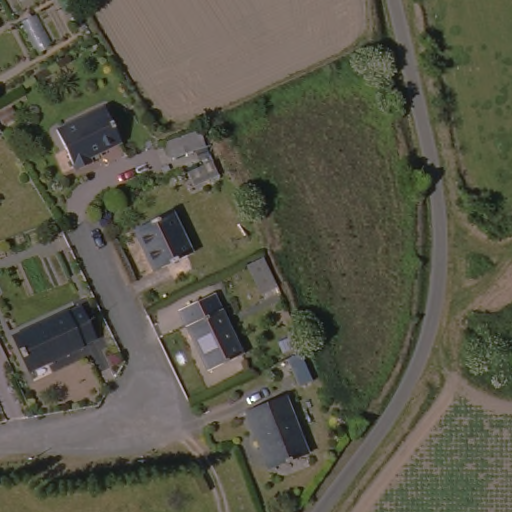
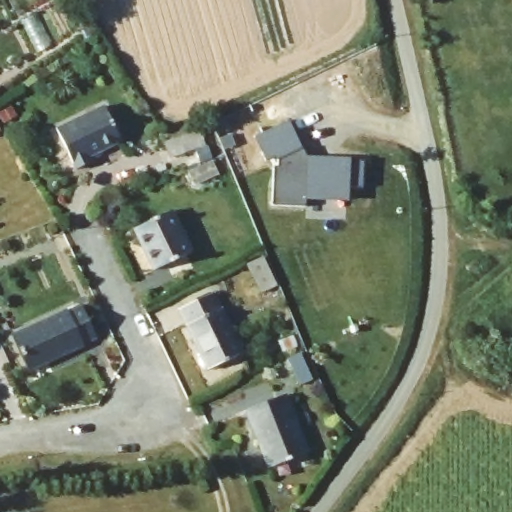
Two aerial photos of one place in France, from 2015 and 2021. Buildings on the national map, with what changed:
unchanged [(102,111),(119,146),(86,160),(89,166),(74,172),(54,132),(102,111)]
new [(303,151),(307,158),(351,160),(364,161),(363,188),(350,186),(349,202),(306,200),(306,207),(274,206),(275,166),(280,166),(280,161),(278,161),(276,157),(267,161),(256,137),(289,122),(303,151)]
unchanged [(0,128),(4,135),(0,137),(0,128)]
unchanged [(209,141),(214,156),(188,166),(183,149),(209,141)]
unchanged [(228,182),(206,191),(199,175),(221,166),(228,182)]
unchanged [(127,235),(169,217),(184,257),(141,273),(127,235)]
unchanged [(268,307),(258,281),(269,275),(281,302),(268,307)]
unchanged [(200,373),(179,317),(214,303),(236,361),(200,373)]
unchanged [(6,335),(79,310),(94,351),(22,377),(6,335)]
unchanged [(318,376),(318,395),(308,395),(301,365),(310,361),(318,376)]
unchanged [(299,462),(263,475),(244,417),(278,405),(299,462)]

